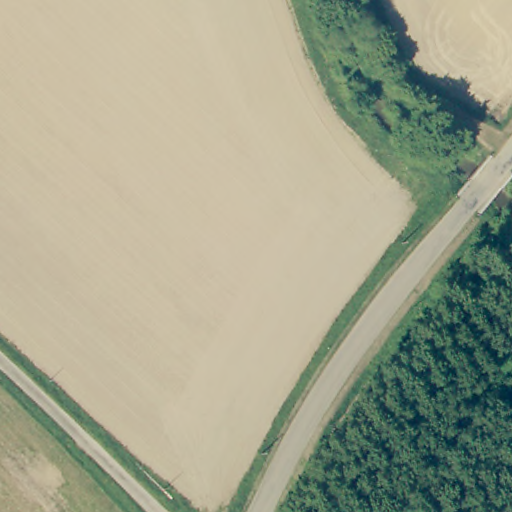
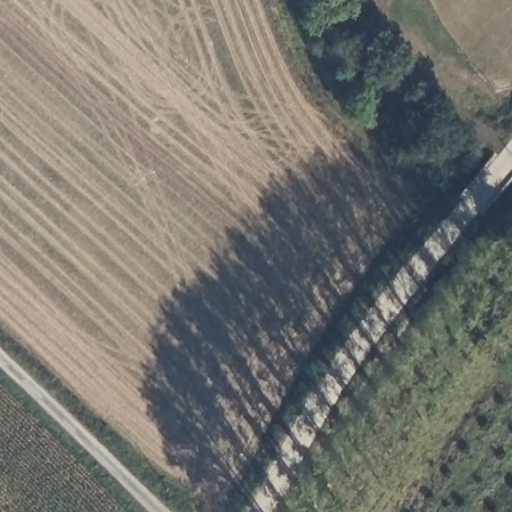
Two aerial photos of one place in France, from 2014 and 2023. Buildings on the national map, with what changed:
[]

